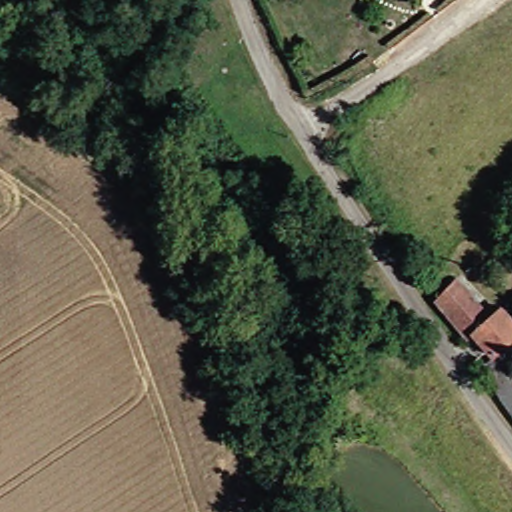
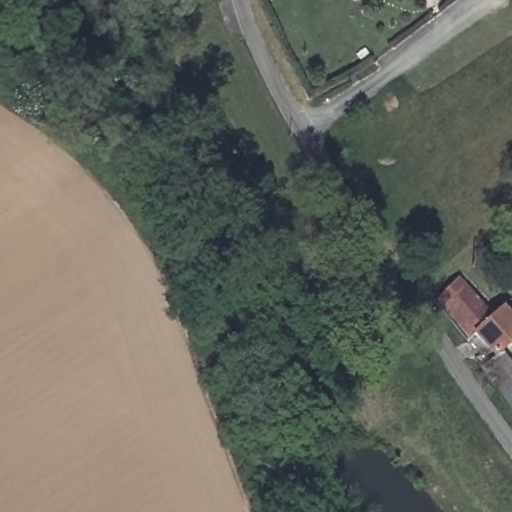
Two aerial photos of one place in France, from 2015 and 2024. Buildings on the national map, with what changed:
unchanged [(512,341),(498,353),(512,373),(512,411),(481,367),(495,356),(484,344),(474,332),(472,330),(466,334),(435,299),(438,296),(456,280),(488,316),(498,307),(512,324),(512,341)]

